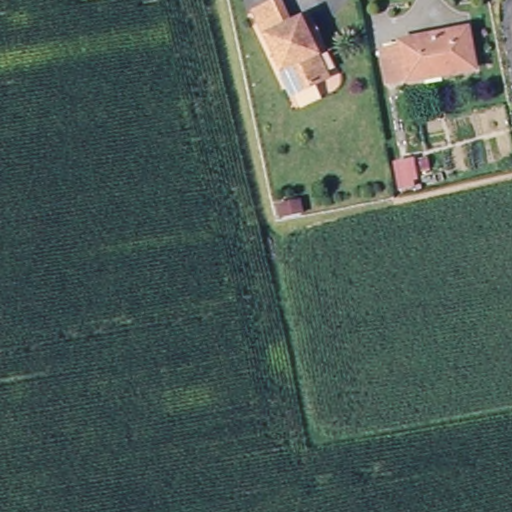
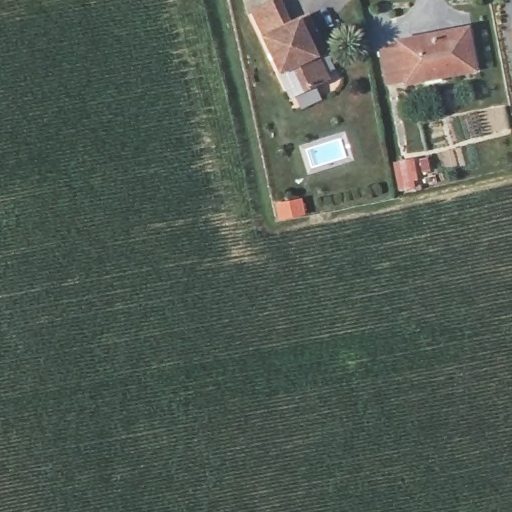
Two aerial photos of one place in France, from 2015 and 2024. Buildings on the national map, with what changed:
unchanged [(317,39),(323,52),(312,56),(324,87),(288,97),(264,39),(268,37),(258,15),(285,5),(293,27),(312,21),(317,39)]
unchanged [(476,70),(387,79),(383,48),(405,46),(405,40),(446,35),(445,41),(472,37),(476,70)]
unchanged [(415,189),(402,191),(398,163),(410,160),(415,189)]

